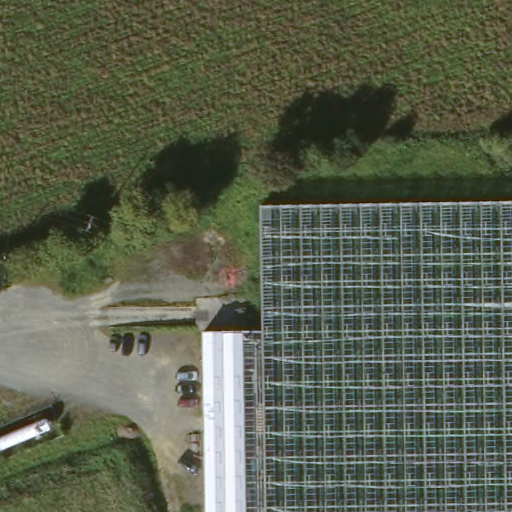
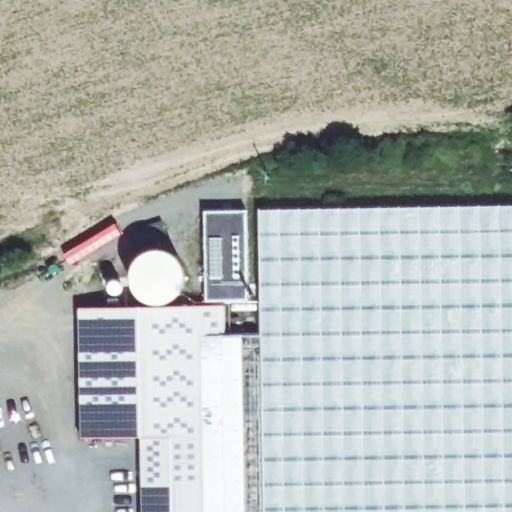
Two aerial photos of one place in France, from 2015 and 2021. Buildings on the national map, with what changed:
new [(246,210),(249,301),(208,300),(206,212),(246,210)]
unchanged [(512,211),(512,512),(255,512),(251,214),(512,211)]
new [(161,248),(172,251),(181,258),(185,268),(187,279),(184,288),(179,295),(171,301),(163,303),(154,303),(144,299),(136,292),(131,283),(131,272),(134,263),(138,257),(146,252),(151,250),(161,248)]
new [(138,435),(81,435),(78,307),(224,306),(224,335),(253,334),(255,512),(140,512),(138,435)]
demolished [(246,386),(224,395),(186,411),(186,342),(246,341),(246,386)]
demolished [(186,411),(224,395),(246,386),(247,512),(186,512),(186,411)]

